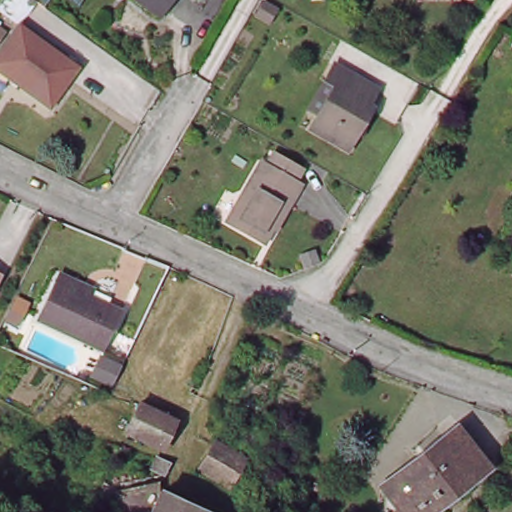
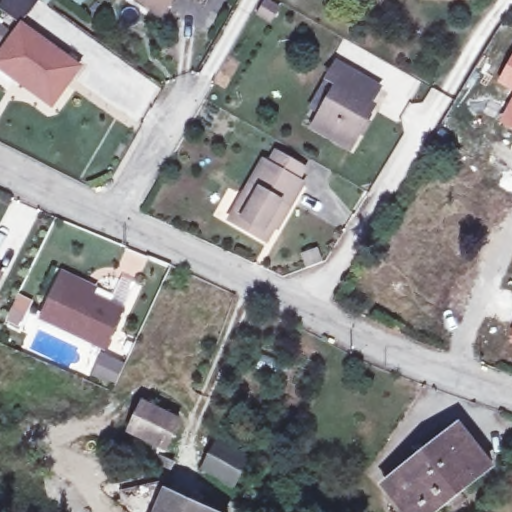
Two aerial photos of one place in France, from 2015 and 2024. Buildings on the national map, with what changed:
unchanged [(20,27),(0,12),(9,0),(38,0),(40,1),(20,27)]
unchanged [(143,0),(175,0),(163,15),(143,0)]
unchanged [(282,15),(275,28),(262,21),(270,8),(282,15)]
unchanged [(80,70),(52,109),(0,70),(0,60),(23,29),(80,70)]
new [(512,91),(496,82),(512,53),(512,91)]
unchanged [(372,103),(376,105),(352,149),(315,129),(338,86),(333,83),(330,81),(340,63),(343,66),(381,87),(372,103)]
new [(512,94),(512,129),(497,122),(512,94)]
unchanged [(270,226),(262,240),(230,221),(262,162),(267,165),(274,152),(302,168),(295,181),(300,184),(280,220),(275,228),(270,226)]
unchanged [(112,350),(46,321),(63,283),(68,272),(100,287),(95,297),(132,312),(112,350)]
new [(512,344),(511,343),(512,340),(512,344)]
unchanged [(165,448),(128,430),(141,399),(180,417),(165,448)]
unchanged [(457,435),(481,468),(465,480),(472,488),(436,512),(403,512),(400,507),(407,501),(390,481),(457,435)]
unchanged [(255,461),(239,488),(207,472),(223,443),(255,461)]
unchanged [(173,460),(167,472),(157,467),(162,457),(173,460)]
unchanged [(166,489),(218,512),(155,512),(166,489)]

